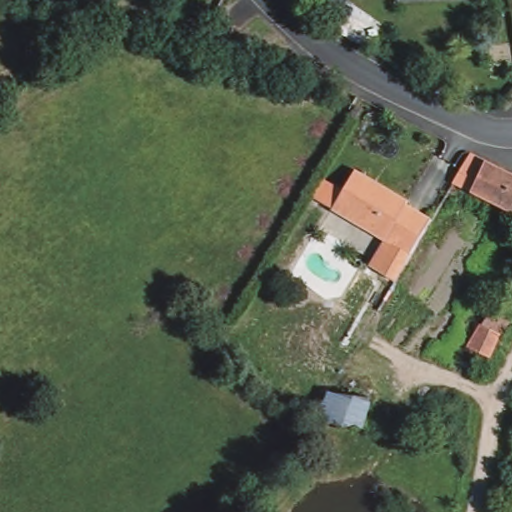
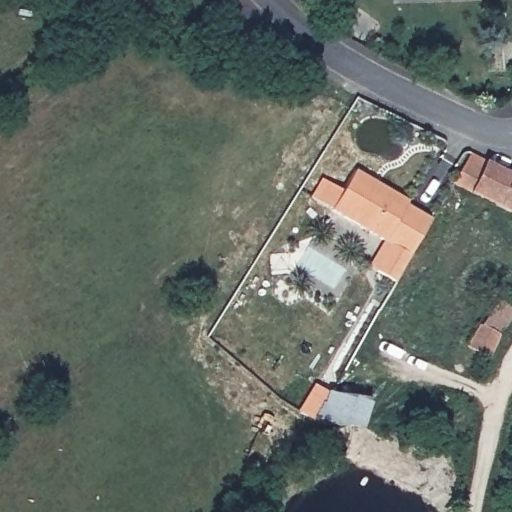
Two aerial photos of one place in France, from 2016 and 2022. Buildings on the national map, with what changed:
unchanged [(471,154),(512,175),(512,216),(453,185),(462,169),(471,154)]
unchanged [(375,239),(331,214),(355,172),(407,199),(405,204),(381,242),(375,239)]
unchanged [(381,242),(405,204),(425,217),(391,279),(364,263),(375,239),(381,242)]
unchanged [(497,295),(512,305),(512,307),(496,329),(487,352),(462,344),(475,319),(479,322),(497,295)]
unchanged [(366,398),(358,424),(315,422),(332,394),(366,398)]

